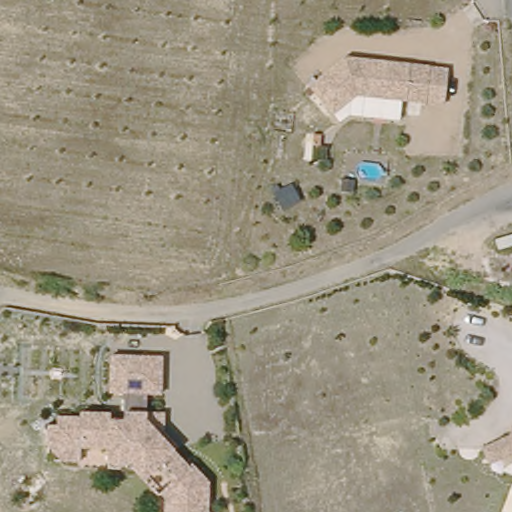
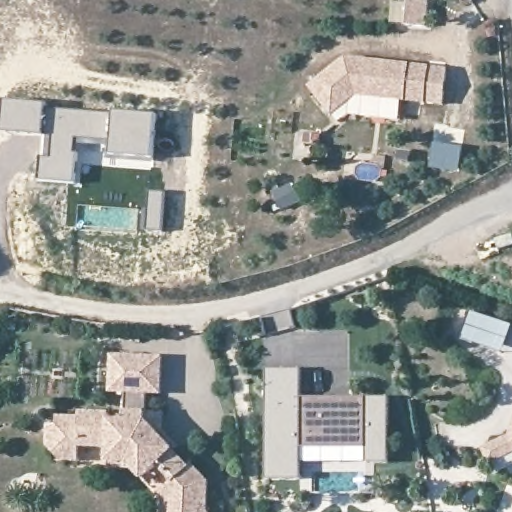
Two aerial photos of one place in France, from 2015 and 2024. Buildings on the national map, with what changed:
new [(407,29),(408,4),(428,5),(427,30),(407,29)]
unchanged [(350,58),(423,67),(422,103),(357,99),(332,118),(305,89),(350,58)]
new [(5,100),(46,103),(44,136),(2,132),(5,100)]
new [(110,144),(109,147),(78,145),(75,184),(40,182),(40,158),(46,158),(48,137),(44,136),(46,110),(112,114),(110,144)]
new [(110,144),(113,111),(157,115),(152,161),(127,158),(108,156),(110,144)]
new [(302,205),(280,213),(273,195),(295,186),(302,205)]
new [(150,190),(165,191),(163,231),(147,230),(150,190)]
unchanged [(490,245),(495,255),(478,263),(473,254),(490,245)]
unchanged [(110,357),(162,358),(161,398),(145,397),(145,413),(165,414),(165,435),(180,449),(175,454),(210,484),(209,512),(163,512),(163,501),(142,484),(126,468),(106,468),(106,451),(81,450),(79,463),(55,461),(51,453),(45,450),(45,426),(55,426),(56,414),(80,415),(116,415),(123,414),(125,397),(108,398),(110,357)]
new [(301,371),(301,399),(333,399),(350,399),(388,399),(389,469),(366,469),(366,454),(301,454),(302,486),(266,486),(265,375),(266,371),(301,371)]
unchanged [(488,462),(483,448),(512,439),(512,454),(488,462)]

